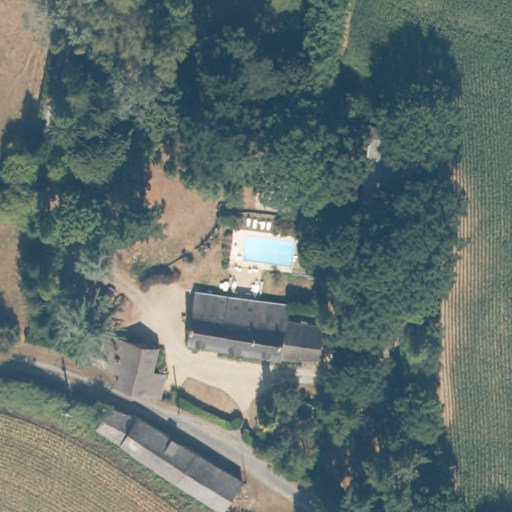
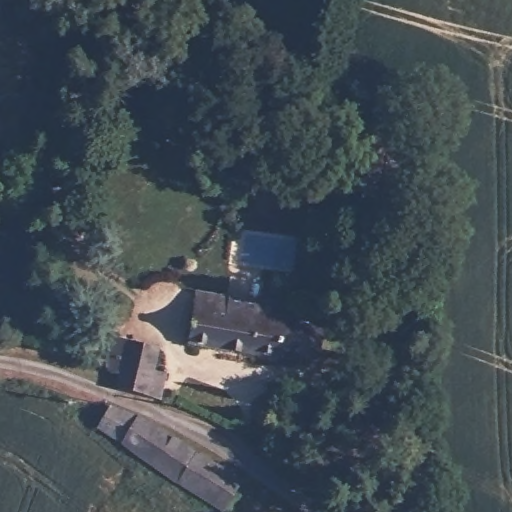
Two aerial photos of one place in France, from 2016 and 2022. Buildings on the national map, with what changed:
unchanged [(272,307),(270,319),(256,318),(253,351),(205,347),(209,303),(209,300),(272,307)]
unchanged [(297,327),(334,330),(330,358),(253,351),(256,318),(270,319),(272,307),(298,310),(297,327)]
unchanged [(110,354),(157,358),(156,383),(167,385),(167,396),(121,392),(121,382),(107,382),(110,354)]
unchanged [(243,476),(220,511),(87,429),(112,400),(243,476)]

